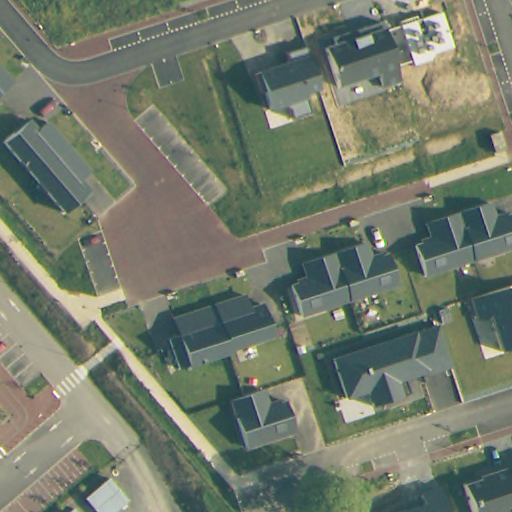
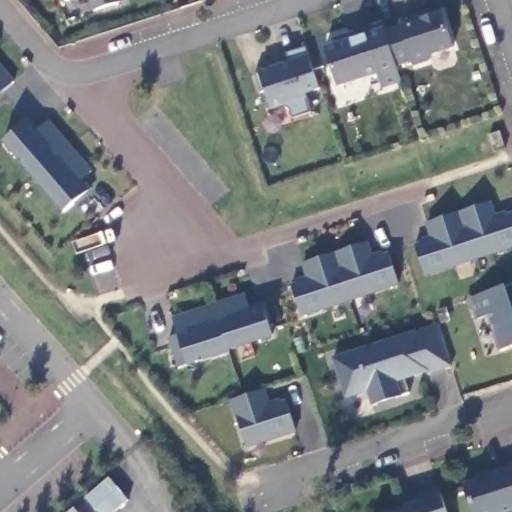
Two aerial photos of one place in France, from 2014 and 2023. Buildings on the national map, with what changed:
unchanged [(60,4),(59,0),(72,0),(60,4)]
unchanged [(121,1),(94,11),(90,0),(120,0),(121,1)]
unchanged [(454,47),(433,54),(433,60),(414,66),(401,25),(442,13),(454,47)]
unchanged [(402,81),(384,87),(377,75),(335,88),(322,46),(383,27),(402,81)]
unchanged [(319,90),(305,94),(312,113),(293,117),(288,105),(272,110),(258,71),(290,60),(287,52),(305,47),(319,90)]
unchanged [(0,95),(0,69),(12,84),(0,95)]
unchanged [(30,121),(37,130),(47,122),(91,174),(81,182),(89,191),(63,214),(4,143),(30,121)]
unchanged [(427,276),(417,245),(425,242),(424,238),(433,235),(429,221),(493,201),(497,214),(508,211),(509,214),(512,213),(512,249),(427,276)]
unchanged [(398,285),(301,317),(291,285),(298,282),(297,278),(307,276),(303,263),(368,241),(373,255),(382,252),(383,255),(388,254),(398,285)]
unchanged [(501,351),(490,316),(481,319),(474,297),(510,286),(512,294),(512,348),(501,351)]
unchanged [(272,338),(184,367),(172,335),(179,333),(174,315),(245,295),(250,307),(263,304),(272,338)]
unchanged [(452,366),(405,380),(410,394),(372,406),(368,392),(346,400),(332,358),(417,330),(417,333),(440,326),(452,366)]
unchanged [(297,432),(247,448),(232,400),(266,388),(271,402),(281,400),(281,402),(286,401),(297,432)]
unchanged [(510,512),(471,512),(462,484),(481,478),(480,475),(512,465),(512,511),(510,512)]
unchanged [(114,512),(96,512),(85,498),(108,480),(127,501),(114,512)]
unchanged [(421,494),(440,488),(447,512),(401,512),(423,505),(421,494)]
unchanged [(69,512),(73,508),(76,512),(69,512)]

